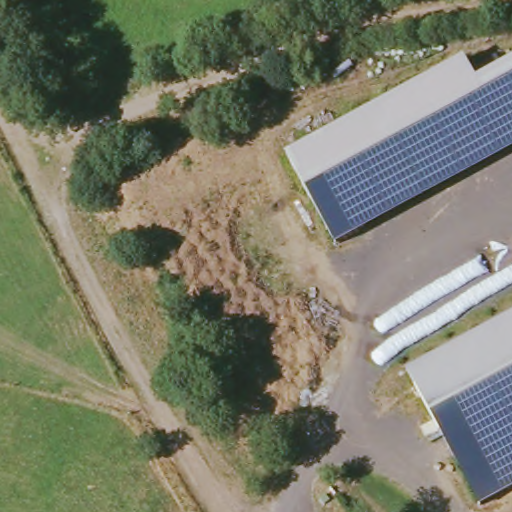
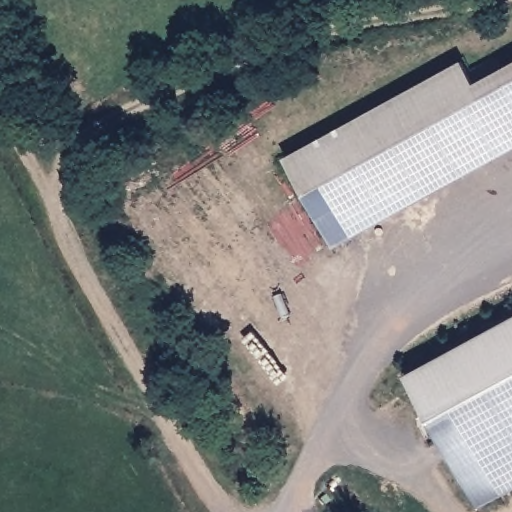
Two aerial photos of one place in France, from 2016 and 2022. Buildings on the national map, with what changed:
unchanged [(289,145),(466,52),(480,71),(512,53),(512,141),(334,237),(289,145)]
unchanged [(512,488),(479,506),(407,371),(512,313),(512,488)]

